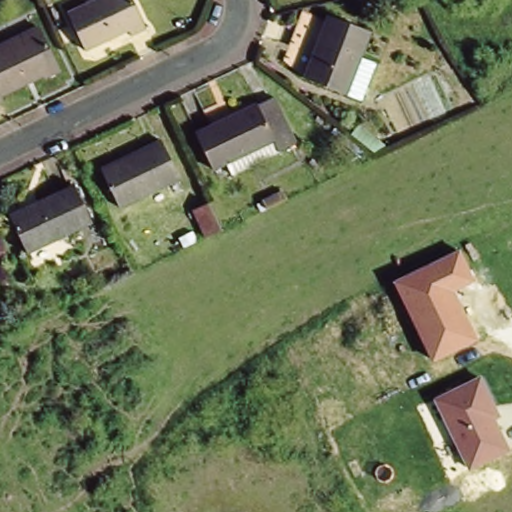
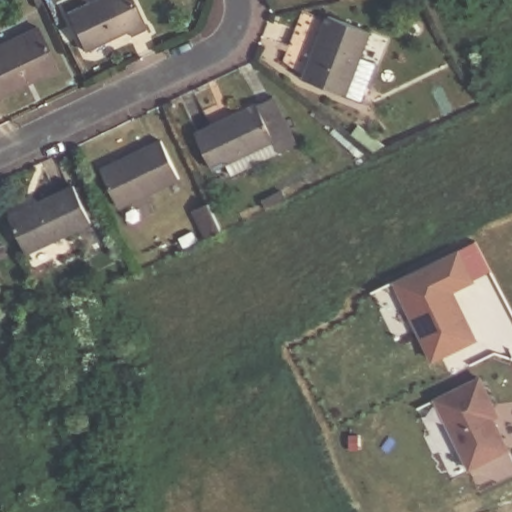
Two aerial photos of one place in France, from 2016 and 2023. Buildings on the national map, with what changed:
unchanged [(94,0),(132,0),(146,30),(132,37),(129,31),(86,51),(68,12),(94,0)]
unchanged [(326,15),(367,32),(345,91),(303,74),(326,15)]
unchanged [(43,74),(0,94),(2,98),(0,99),(0,46),(40,28),(60,71),(45,77),(43,74)]
unchanged [(345,94),(360,57),(371,62),(356,98),(345,94)]
unchanged [(228,159),(214,165),(197,129),(275,92),(296,140),(280,147),(233,169),(228,159)]
unchanged [(162,136),(180,174),(120,203),(102,164),(162,136)]
unchanged [(10,217),(75,186),(92,223),(28,254),(10,217)]
unchanged [(210,204),(223,231),(208,238),(195,211),(210,204)]
unchanged [(393,281),(461,247),(476,280),(455,292),(478,339),(432,362),(393,281)]
unchanged [(432,397),(481,376),(499,415),(495,418),(507,449),(466,470),(432,397)]

